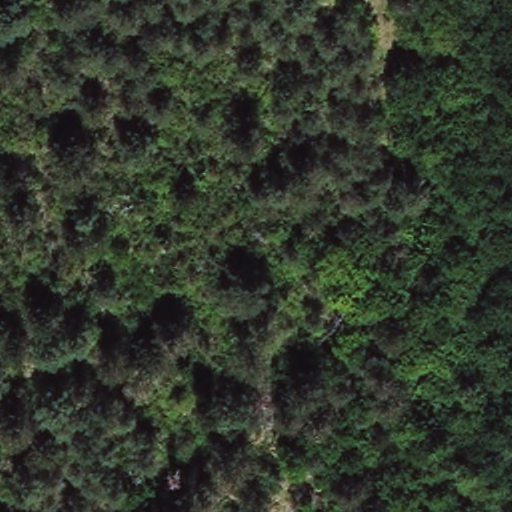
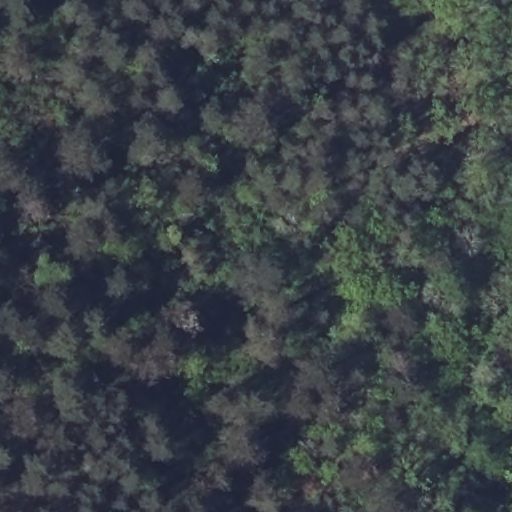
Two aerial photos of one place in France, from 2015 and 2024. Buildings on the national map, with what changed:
[]

